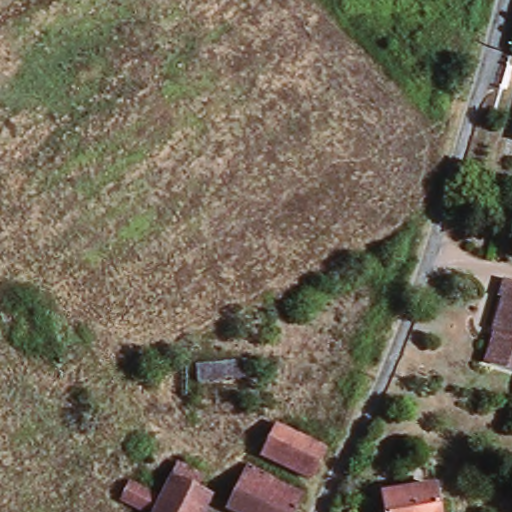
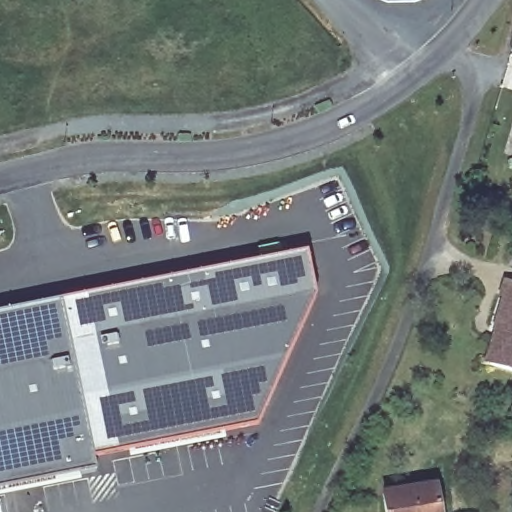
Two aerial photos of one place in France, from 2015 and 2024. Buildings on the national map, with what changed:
new [(317,292),(258,425),(93,459),(95,470),(0,488),(0,312),(309,250),(317,292)]
unchanged [(504,329),(512,301),(512,366),(502,364),(494,362),(504,329)]
demolished [(272,456),(286,426),(335,449),(321,477),(272,456)]
demolished [(183,479),(190,462),(217,474),(208,491),(183,479)]
demolished [(307,512),(241,512),(238,511),(254,477),(312,502),(307,512)]
demolished [(174,496),(167,512),(153,512),(131,502),(141,481),(174,496)]
unchanged [(393,492),(443,483),(447,512),(396,512),(393,492)]

